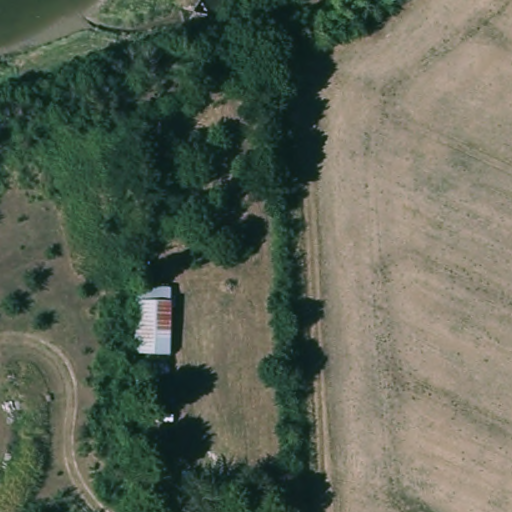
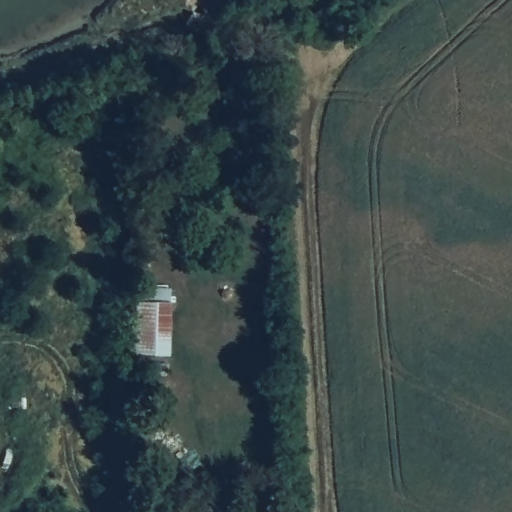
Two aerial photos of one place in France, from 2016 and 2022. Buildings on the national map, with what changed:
unchanged [(177,304),(176,355),(175,372),(141,369),(141,352),(141,305),(141,287),(175,290),(177,304)]

